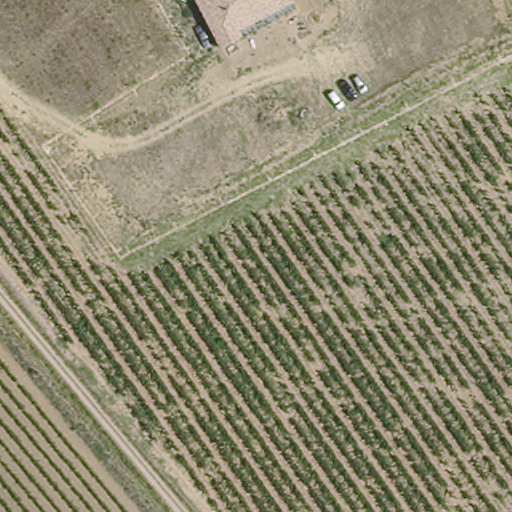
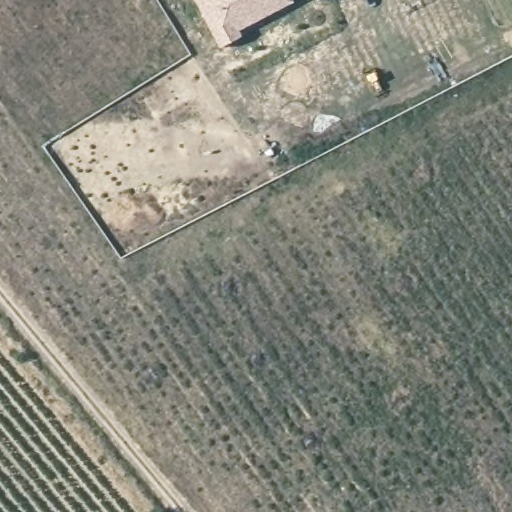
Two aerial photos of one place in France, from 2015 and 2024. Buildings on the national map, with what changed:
unchanged [(195,0),(293,0),(295,2),(240,32),(242,37),(220,47),(195,0)]

